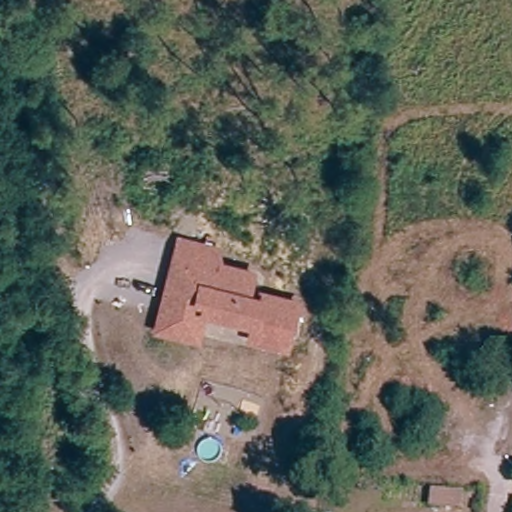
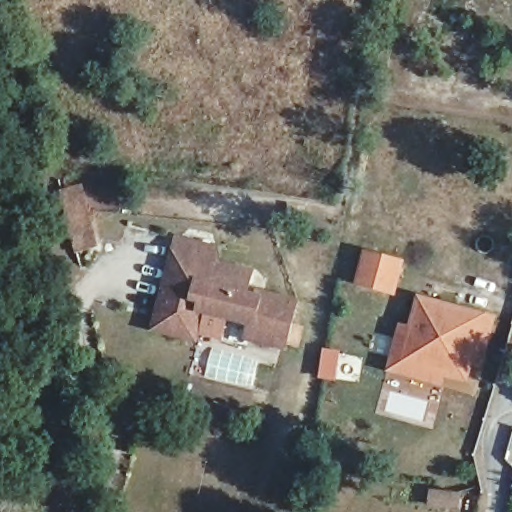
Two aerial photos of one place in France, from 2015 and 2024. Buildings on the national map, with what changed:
unchanged [(286,351),(251,342),(254,327),(245,325),(204,315),(197,342),(158,332),(167,297),(173,298),(175,291),(169,290),(181,243),(212,251),(208,265),(253,276),(248,299),(261,302),(262,297),(265,298),(298,306),(286,351)]
new [(408,260),(399,296),(356,286),(365,250),(408,260)]
new [(499,316),(484,369),(474,366),(470,384),(447,378),(445,387),(388,372),(401,323),(411,326),(418,295),(499,316)]
demolished [(446,448),(455,400),(481,406),(471,454),(446,448)]
unchanged [(421,512),(423,499),(449,503),(447,512),(421,512)]

